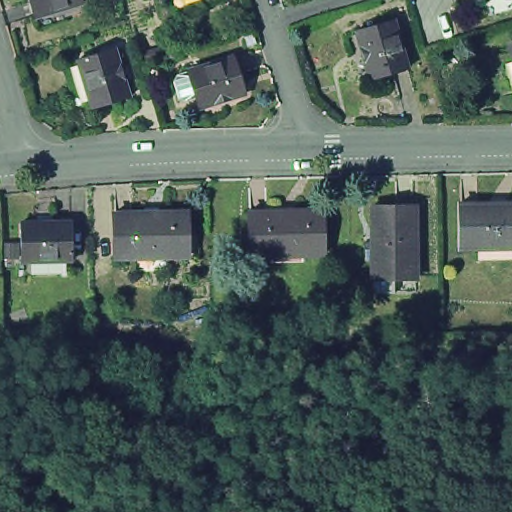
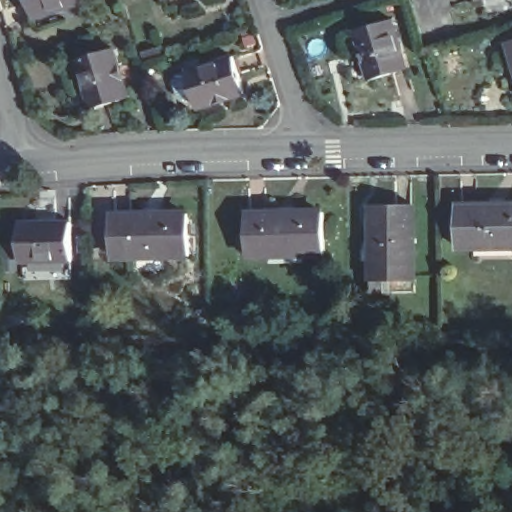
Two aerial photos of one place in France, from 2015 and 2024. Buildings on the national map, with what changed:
unchanged [(80,4),(31,19),(26,0),(79,0),(80,4)]
unchanged [(165,4),(164,0),(177,0),(165,4)]
unchanged [(475,4),(474,0),(487,0),(475,4)]
unchanged [(414,66),(377,76),(364,27),(400,17),(414,66)]
unchanged [(506,45),(512,43),(512,66),(506,45)]
unchanged [(122,99),(85,110),(70,62),(107,50),(122,99)]
unchanged [(248,94),(200,109),(189,73),(237,59),(248,94)]
unchanged [(374,290),(374,277),(374,257),(367,257),(367,239),(374,239),(374,203),(415,203),(415,277),(395,277),(395,289),(374,290)]
unchanged [(455,250),(455,207),(488,206),(490,208),(512,207),(512,248),(507,249),(475,249),(455,250)]
unchanged [(272,256),(251,257),(250,213),(282,212),(282,214),(325,213),(325,255),(304,256),(272,256)]
unchanged [(136,263),(116,263),(115,221),(147,220),(147,222),(189,221),(190,262),(169,262),(136,263)]
unchanged [(19,233),(52,227),(67,224),(74,262),(62,265),(27,271),(19,233)]

